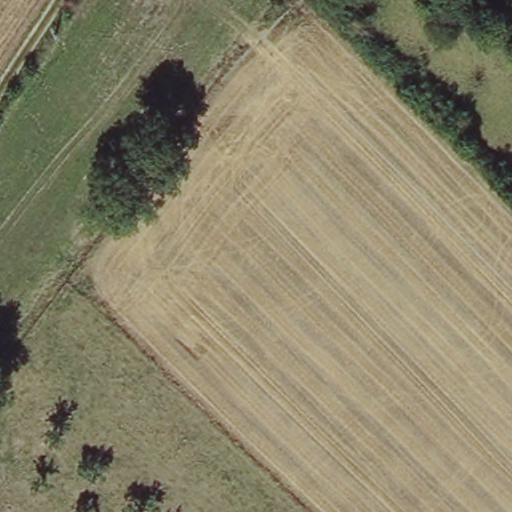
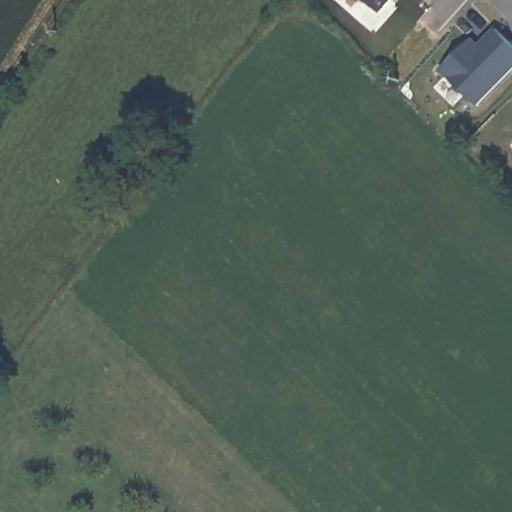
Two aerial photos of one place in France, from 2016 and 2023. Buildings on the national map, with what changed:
new [(378,15),(362,0),(388,0),(390,2),(378,15)]
new [(478,47),(496,30),(512,46),(512,69),(475,106),(441,71),(471,40),(478,47)]

